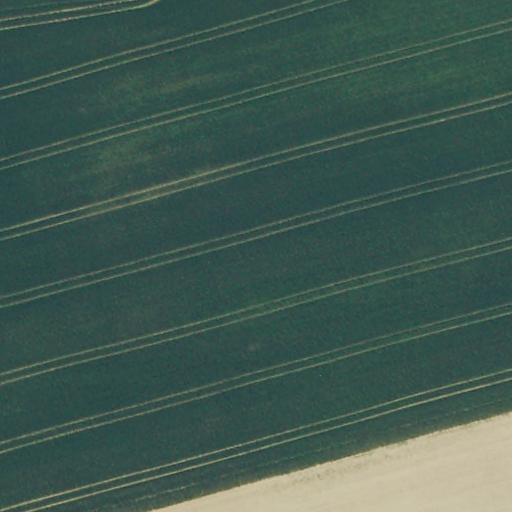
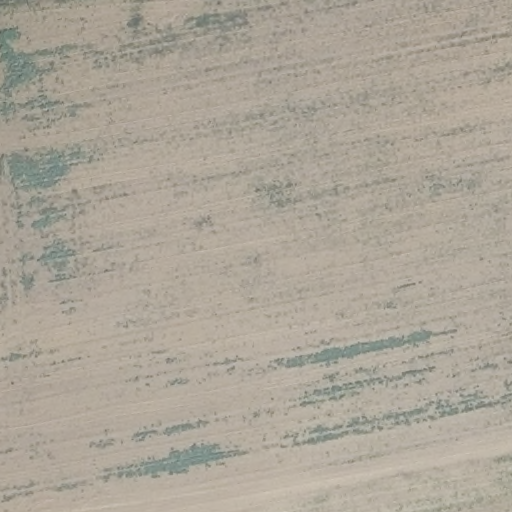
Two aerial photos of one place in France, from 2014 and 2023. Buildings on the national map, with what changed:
[]

